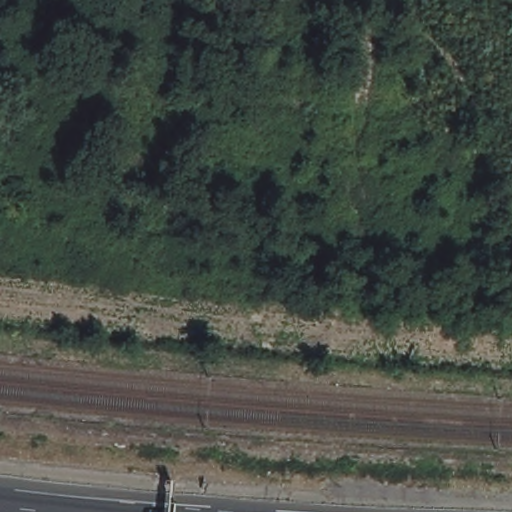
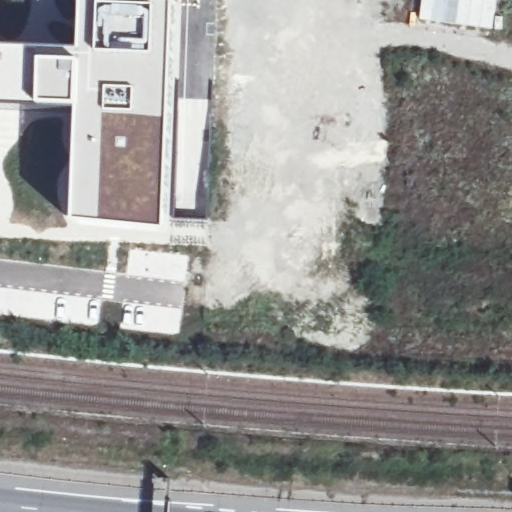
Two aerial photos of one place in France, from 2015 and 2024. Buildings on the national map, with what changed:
new [(80,49),(82,0),(179,0),(173,132),(174,186),(170,231),(72,226),(76,111),(40,110),(0,110),(0,48),(80,49)]

